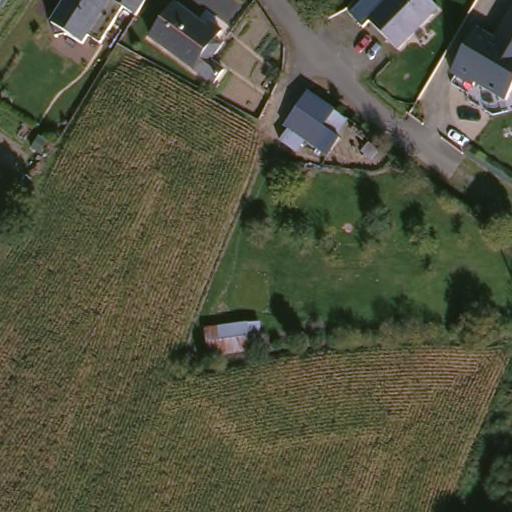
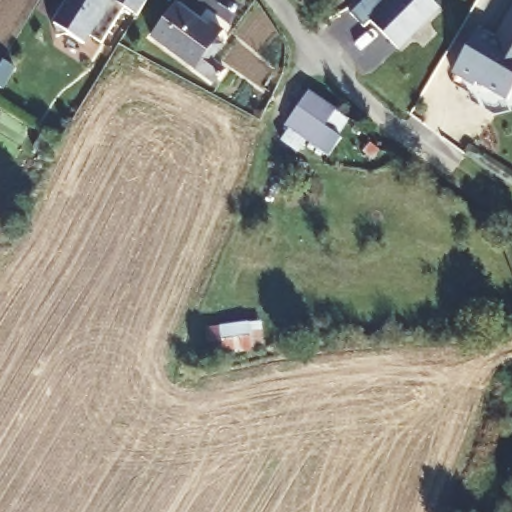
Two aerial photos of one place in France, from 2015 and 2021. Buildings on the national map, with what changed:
unchanged [(143,14),(130,8),(109,45),(62,20),(73,0),(152,0),(143,14)]
unchanged [(356,0),(381,0),(386,5),(390,0),(428,0),(436,9),(397,49),(350,5),(356,0)]
unchanged [(214,17),(224,26),(219,34),(224,38),(212,54),(225,66),(215,79),(154,32),(178,1),(208,25),(214,17)]
unchanged [(493,34),(512,8),(512,87),(507,95),(452,72),(479,27),(493,34)]
unchanged [(349,120),(337,135),(341,139),(327,156),(286,124),(312,91),(349,120)]
unchanged [(211,355),(210,331),(262,325),(264,350),(211,355)]

